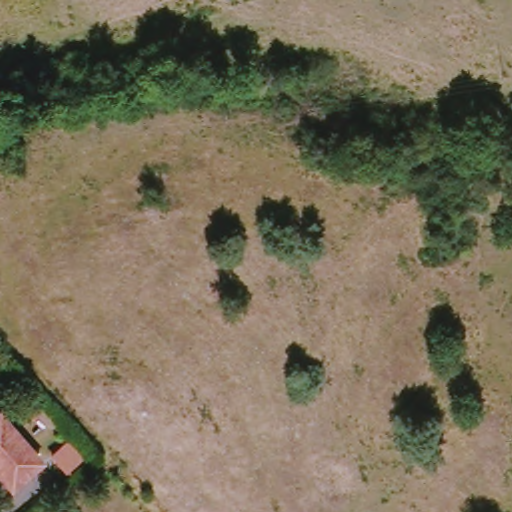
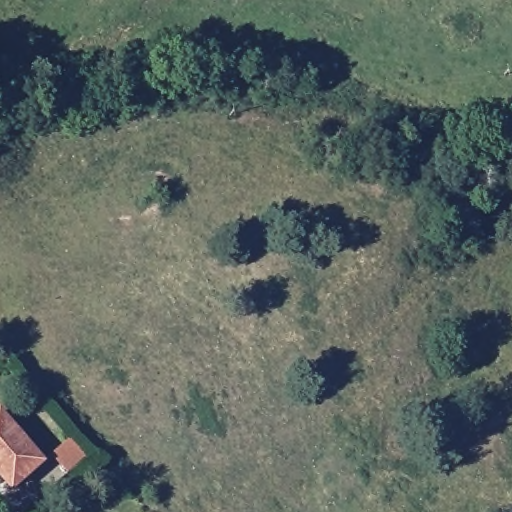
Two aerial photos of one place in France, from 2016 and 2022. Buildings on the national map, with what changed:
unchanged [(20,492),(12,484),(10,487),(0,478),(0,419),(1,418),(50,463),(20,492)]
unchanged [(87,452),(72,468),(54,451),(70,435),(87,452)]

